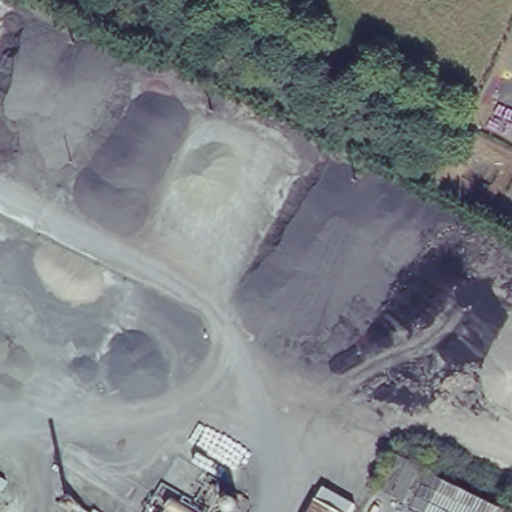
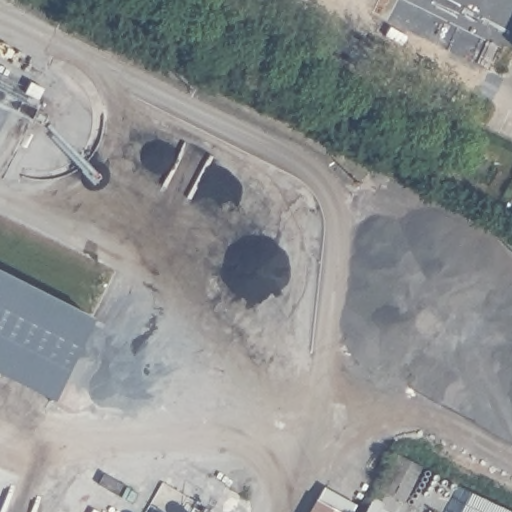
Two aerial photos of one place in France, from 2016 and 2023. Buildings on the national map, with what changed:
new [(50,392),(0,366),(0,262),(91,309),(50,392)]
unchanged [(416,472),(395,512),(372,499),(393,459),(416,472)]
unchanged [(315,494),(324,486),(358,504),(355,512),(305,512),(315,494)]

